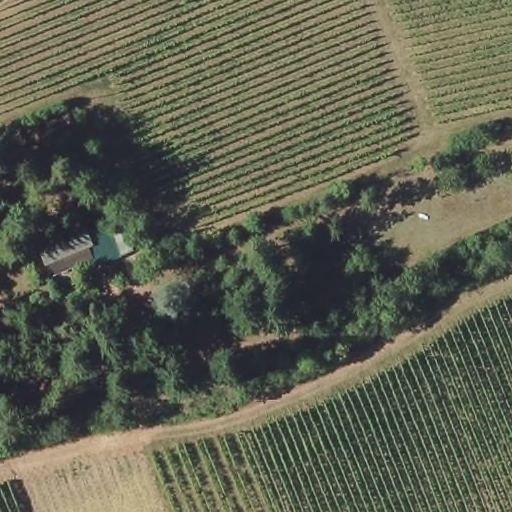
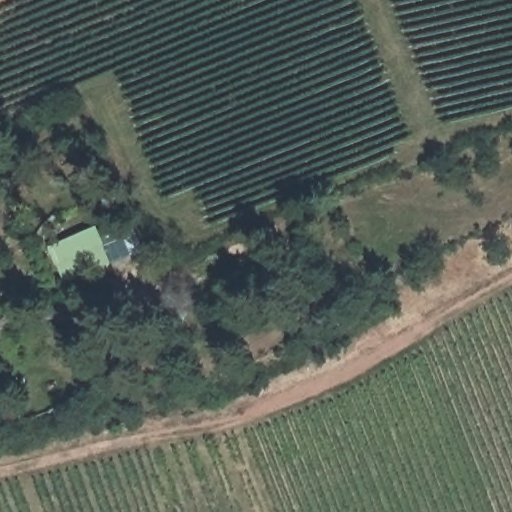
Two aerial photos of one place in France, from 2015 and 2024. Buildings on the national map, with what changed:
unchanged [(138,225),(150,246),(118,263),(109,257),(65,273),(52,247),(138,225)]

